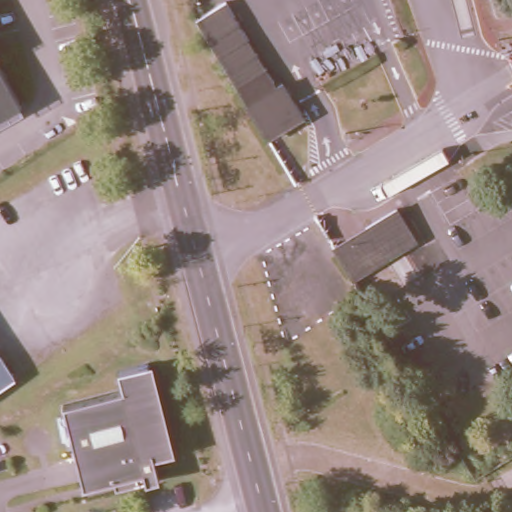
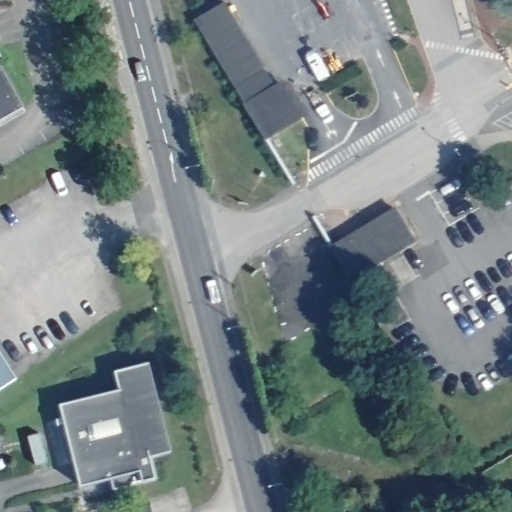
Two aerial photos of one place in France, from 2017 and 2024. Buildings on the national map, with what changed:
unchanged [(221,0),(224,0),(275,77),(282,74),(303,112),(266,133),(195,15),(221,0)]
unchanged [(23,108),(0,121),(0,65),(23,108)]
unchanged [(390,202),(411,236),(353,272),(335,244),(363,226),(360,220),(390,202)]
unchanged [(14,375),(0,383),(0,352),(14,375)]
unchanged [(63,406),(123,390),(118,372),(148,364),(172,453),(155,458),(161,479),(117,490),(115,480),(85,488),(63,406)]

